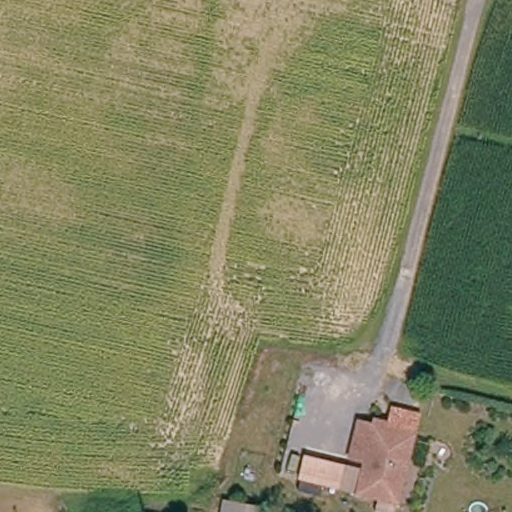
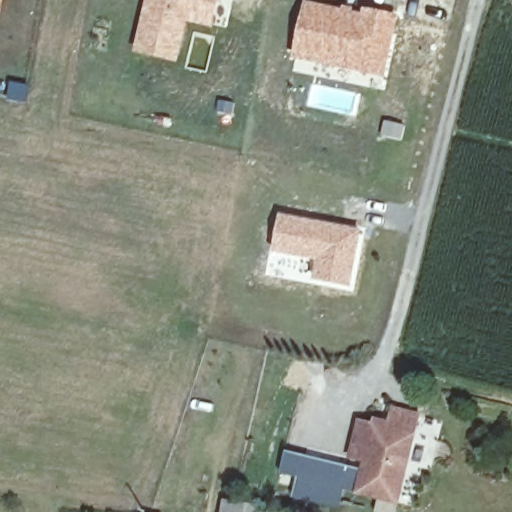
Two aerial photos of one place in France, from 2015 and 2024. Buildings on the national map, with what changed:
new [(1,15),(0,15),(0,0),(4,0),(1,15)]
new [(147,0),(218,0),(212,27),(188,23),(177,64),(133,53),(147,0)]
new [(304,0),(360,9),(361,6),(398,14),(384,79),(292,60),(304,0)]
new [(280,213),(363,230),(350,289),(308,280),(312,261),(272,253),(280,213)]
unchanged [(398,501),(357,490),(366,459),(351,455),(361,419),(376,424),(378,418),(387,420),(386,427),(415,435),(398,501)]
new [(349,465),(351,455),(366,459),(357,490),(355,494),(344,490),(339,511),(292,499),(297,478),(280,475),(286,450),(349,465)]
unchanged [(229,500),(248,506),(247,512),(219,512),(221,498),(229,500)]
unchanged [(137,512),(135,512),(135,511),(137,512)]

